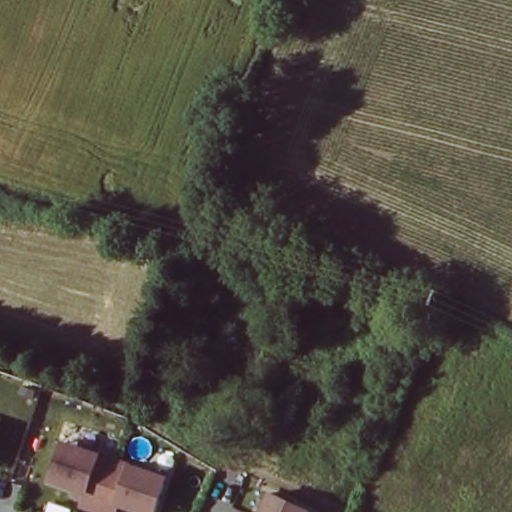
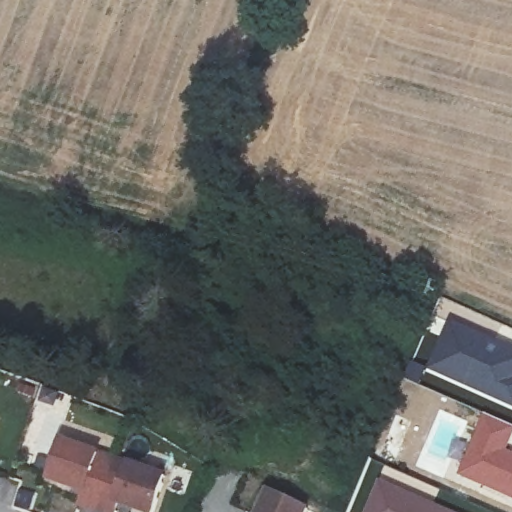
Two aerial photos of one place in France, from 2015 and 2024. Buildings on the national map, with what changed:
new [(411,359),(427,365),(446,315),(485,330),(504,335),(512,339),(512,410),(425,372),(421,385),(402,378),(411,359)]
new [(485,414),(512,425),(512,438),(507,448),(512,451),(512,499),(455,475),(485,414)]
unchanged [(74,501),(77,492),(57,485),(71,445),(121,462),(111,492),(104,512),(74,501)]
unchanged [(172,480),(160,512),(104,512),(111,492),(121,462),(172,480)]
new [(379,473),(459,512),(361,512),(379,473)]
unchanged [(300,512),(271,512),(274,506),(277,501),(300,512)]

